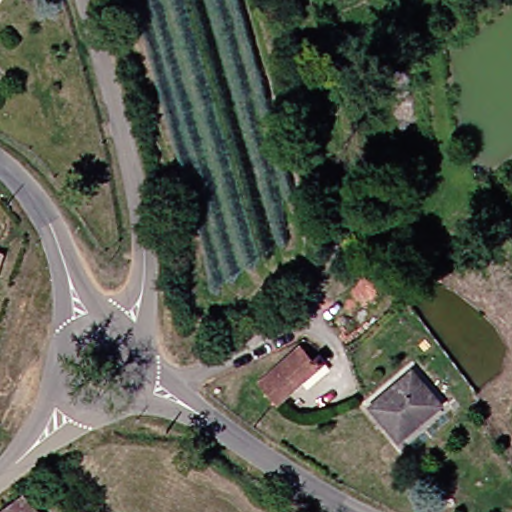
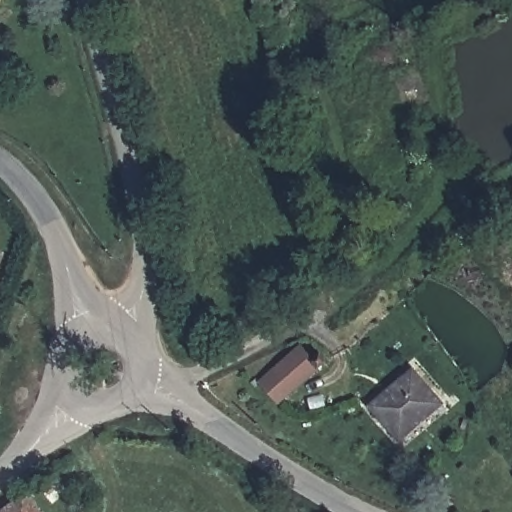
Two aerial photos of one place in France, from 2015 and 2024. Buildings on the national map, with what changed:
unchanged [(2,247),(0,254),(0,247),(2,247)]
unchanged [(250,387),(299,340),(320,361),(309,370),(270,407),(250,387)]
unchanged [(360,408),(405,370),(436,405),(393,444),(360,408)]
unchanged [(35,512),(0,512),(0,510),(19,495),(35,512)]

